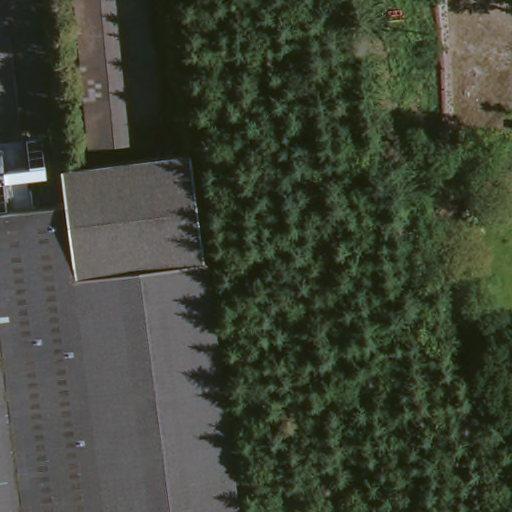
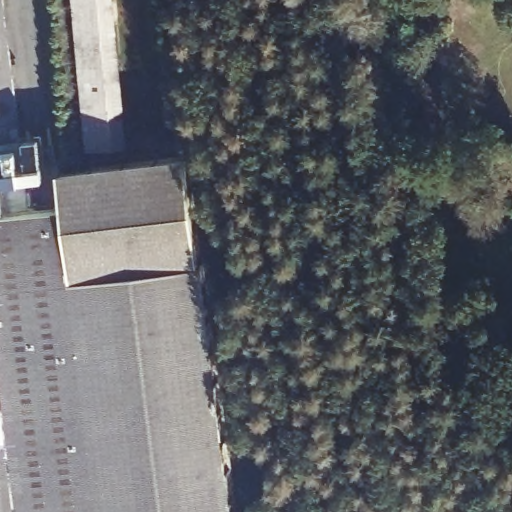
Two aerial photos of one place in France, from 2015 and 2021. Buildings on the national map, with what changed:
unchanged [(48,158),(49,168),(61,168),(194,149),(239,512),(0,512),(0,0),(6,0),(23,161),(48,158)]
unchanged [(112,0),(113,5),(72,8),(71,0),(112,0)]
unchanged [(126,146),(84,149),(72,8),(113,5),(126,146)]

